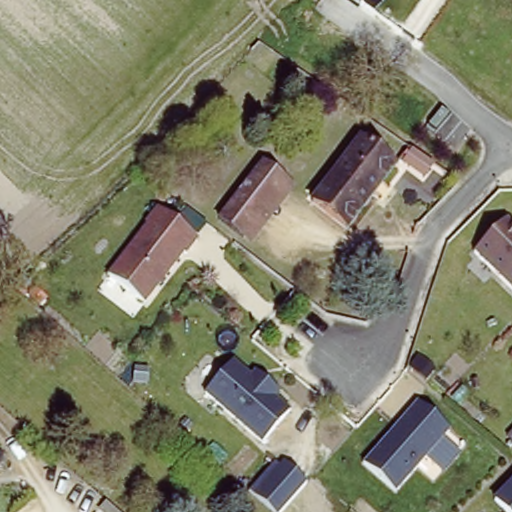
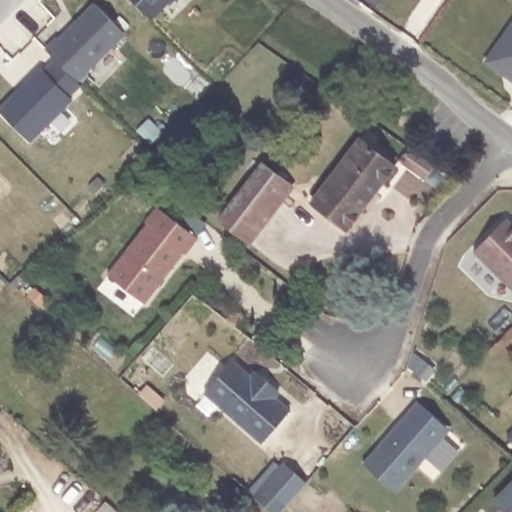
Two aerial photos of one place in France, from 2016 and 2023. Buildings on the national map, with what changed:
new [(131,0),(172,0),(152,21),(131,0)]
new [(44,70),(55,58),(45,48),(57,36),(60,38),(94,3),(125,34),(80,81),(82,84),(70,96),(73,100),(31,144),(0,113),(0,109),(40,67),(44,70)]
new [(512,21),(512,82),(484,63),(512,21)]
unchanged [(344,222),(309,194),(360,132),(395,161),(381,178),(374,187),(344,222)]
unchanged [(265,158),(296,183),(251,239),(220,214),(265,158)]
unchanged [(195,240),(182,256),(180,254),(140,305),(105,276),(145,225),(142,224),(155,208),(195,240)]
unchanged [(469,251),(501,217),(512,227),(512,292),(469,251)]
unchanged [(274,400),(290,413),(262,445),(205,394),(232,363),(251,379),(255,373),(263,380),(279,394),(274,400)]
unchanged [(444,433),(390,494),(357,466),(374,446),(380,440),(411,404),(444,433)]
unchanged [(282,460),(305,481),(279,512),(273,512),(253,495),(282,460)]
unchanged [(512,482),(512,512),(497,497),(512,482)]

